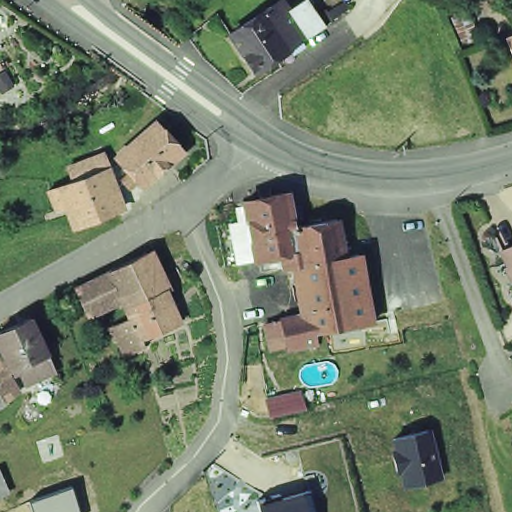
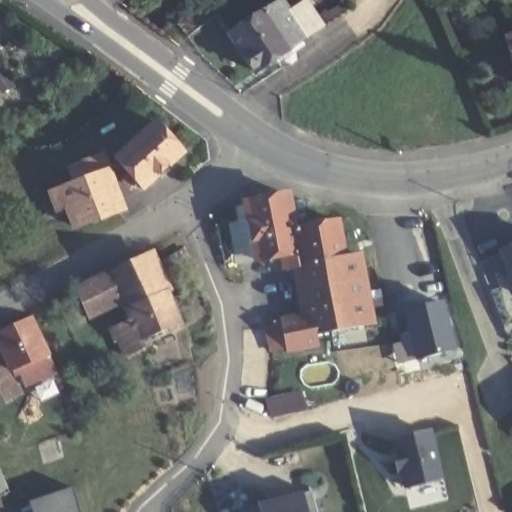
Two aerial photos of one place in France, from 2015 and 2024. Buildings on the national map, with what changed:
unchanged [(304,0),(306,0),(323,26),(307,38),(305,36),(252,71),(241,55),(243,54),(230,34),(282,1),(288,11),(304,0)]
unchanged [(501,40),(512,36),(512,72),(501,40)]
unchanged [(151,113),(177,143),(137,178),(110,148),(151,113)]
unchanged [(75,165),(108,151),(115,167),(111,169),(127,208),(89,224),(80,202),(67,206),(60,187),(80,178),(75,165)]
unchanged [(301,260),(278,264),(275,251),(255,255),(244,199),(287,190),(295,224),(338,216),(345,252),(301,260)]
unchanged [(497,248),(512,240),(512,279),(497,248)]
unchanged [(135,302),(130,292),(120,265),(153,246),(170,285),(135,302)]
unchanged [(358,249),(362,263),(372,261),(373,271),(363,272),(305,283),(301,260),(345,252),(358,249)]
unchanged [(81,286),(120,265),(130,292),(93,310),(81,286)]
unchanged [(310,310),(305,283),(363,272),(372,318),(317,328),(319,337),(287,344),(285,335),(269,338),(265,320),(281,316),(310,310)]
unchanged [(132,350),(120,320),(137,311),(135,302),(170,285),(183,317),(146,335),(148,342),(132,350)]
new [(404,339),(400,312),(447,301),(458,351),(397,365),(391,342),(404,339)]
unchanged [(59,378),(0,408),(0,332),(32,315),(59,378)]
unchanged [(509,403),(512,400),(512,407),(509,403)]
unchanged [(433,432),(445,480),(406,490),(392,442),(433,432)]
unchanged [(0,492),(0,477),(5,489),(0,492)]
unchanged [(30,503),(72,489),(79,512),(33,512),(30,503)]
unchanged [(302,496),(315,493),(319,512),(263,512),(262,506),(302,496)]

